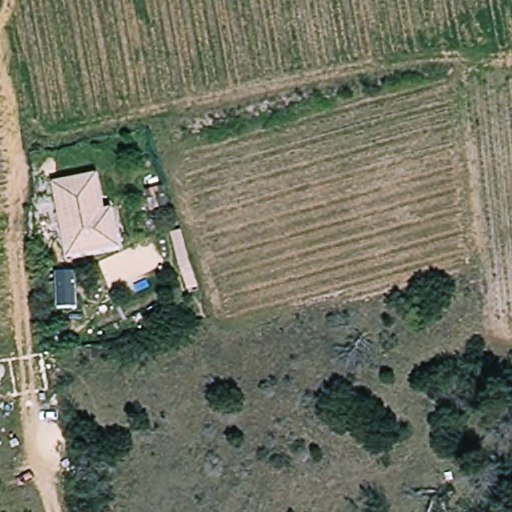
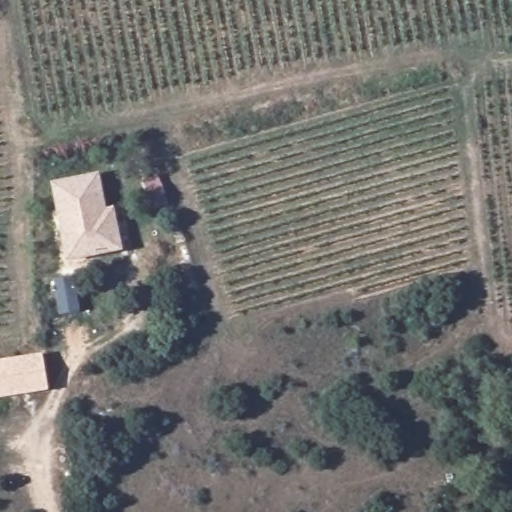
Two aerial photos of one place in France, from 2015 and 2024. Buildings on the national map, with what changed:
unchanged [(105,211),(112,209),(119,250),(67,261),(53,184),(96,176),(105,211)]
unchanged [(55,274),(76,273),(78,309),(57,307),(55,274)]
new [(42,354),(49,392),(0,399),(0,361),(42,354)]

